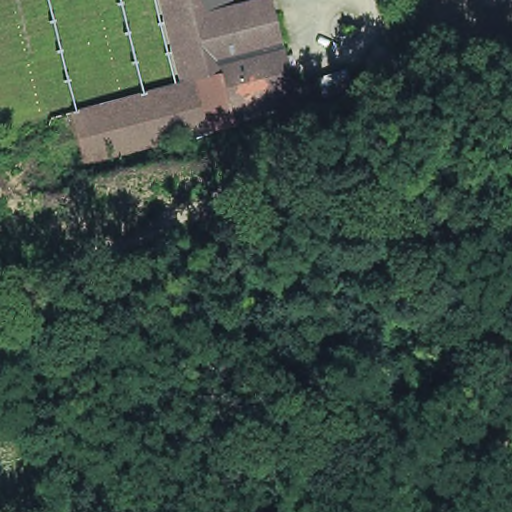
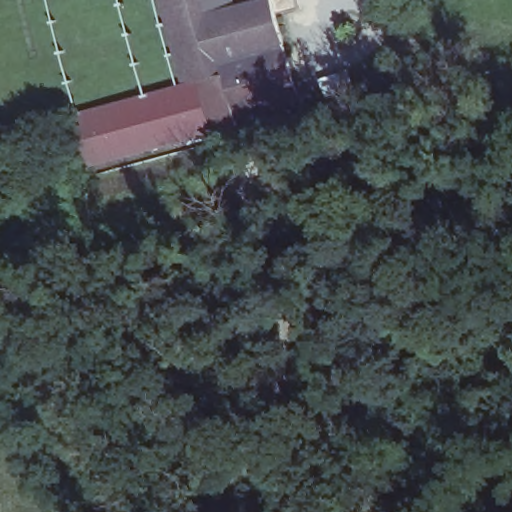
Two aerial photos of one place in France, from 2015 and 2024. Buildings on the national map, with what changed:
unchanged [(247,0),(277,0),(301,105),(90,162),(74,111),(181,82),(161,0),(238,0),(239,2),(247,0)]

